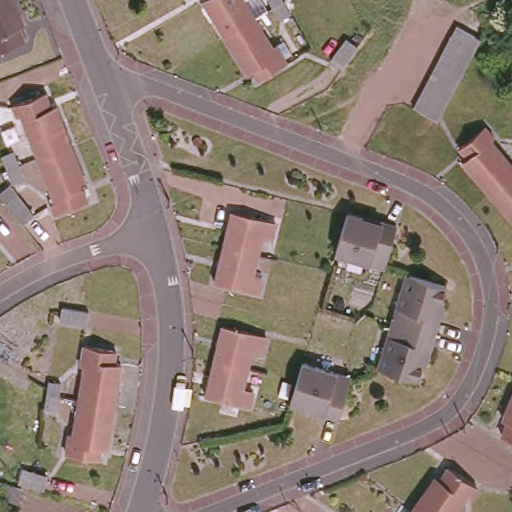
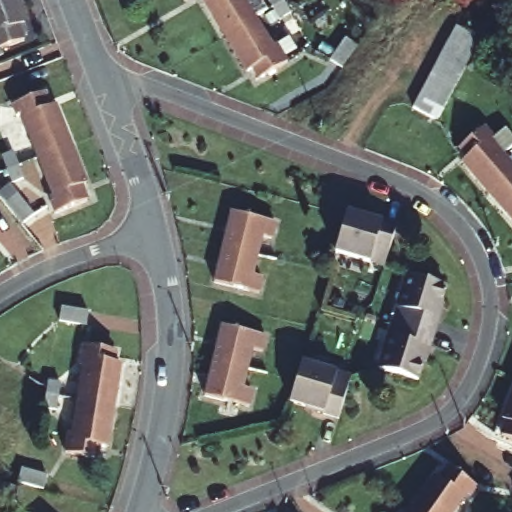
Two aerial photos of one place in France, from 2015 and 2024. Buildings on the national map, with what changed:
unchanged [(25,24),(20,26),(24,36),(0,45),(0,0),(16,0),(25,24)]
unchanged [(206,0),(248,0),(258,16),(227,35),(206,0)]
unchanged [(283,17),(276,6),(273,1),(272,0),(287,0),(294,11),(283,17)]
unchanged [(280,53),(284,51),(290,62),(262,79),(255,68),(250,71),(227,35),(258,16),(280,53)]
unchanged [(439,120),(415,106),(464,27),(487,41),(439,120)]
unchanged [(362,47),(345,69),(334,60),(350,39),(362,47)]
unchanged [(20,107),(17,108),(14,101),(46,90),(50,101),(55,99),(70,141),(37,152),(20,107)]
unchanged [(463,166),(469,162),(460,151),(486,130),(512,160),(512,180),(490,198),(463,166)]
unchanged [(82,181),(87,193),(54,207),(50,200),(55,198),(37,152),(70,141),(86,180),(82,181)]
unchanged [(512,180),(512,223),(490,198),(512,180)]
unchanged [(227,206),(272,217),(268,233),(258,231),(253,249),(219,241),(227,206)]
unchanged [(380,221),(381,220),(397,225),(385,265),(335,250),(347,213),(347,211),(380,221)]
unchanged [(259,272),(255,287),(210,276),(219,241),(253,249),(248,269),(259,272)]
unchanged [(446,285),(437,317),(438,317),(434,332),(393,320),(407,273),(446,285)]
unchanged [(84,325),(57,321),(59,308),(85,311),(84,325)]
unchanged [(434,332),(429,347),(427,347),(418,379),(379,367),(393,320),(434,332)]
unchanged [(222,324),(265,334),(262,350),(251,348),(247,367),(214,359),(222,324)]
unchanged [(85,353),(81,352),(82,344),(114,348),(112,361),(120,362),(112,405),(78,399),(85,353)]
unchanged [(252,389),(249,405),(205,393),(214,359),(247,367),(242,387),(252,389)]
unchanged [(340,416),(324,411),(325,410),(290,400),(297,378),(302,361),(352,376),(340,416)]
unchanged [(60,384),(57,395),(55,408),(43,406),(45,393),(47,379),(56,381),(60,382),(60,384)]
unchanged [(506,423),(499,420),(512,385),(512,438),(501,434),(506,423)]
unchanged [(99,446),(97,458),(64,452),(65,445),(70,446),(78,399),(112,405),(106,447),(99,446)]
unchanged [(437,475),(445,466),(472,487),(465,496),(462,494),(448,512),(414,512),(405,505),(430,470),(437,475)]
unchanged [(40,486),(40,490),(14,483),(17,469),(22,470),(44,476),(40,486)]
unchanged [(14,503),(0,500),(0,485),(17,489),(14,503)]
unchanged [(400,512),(405,505),(414,512),(400,512)]

